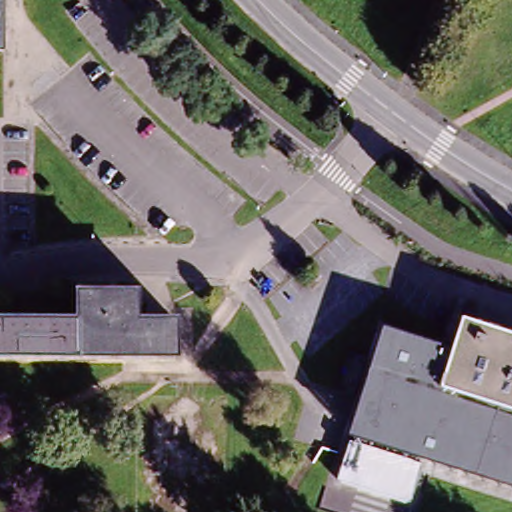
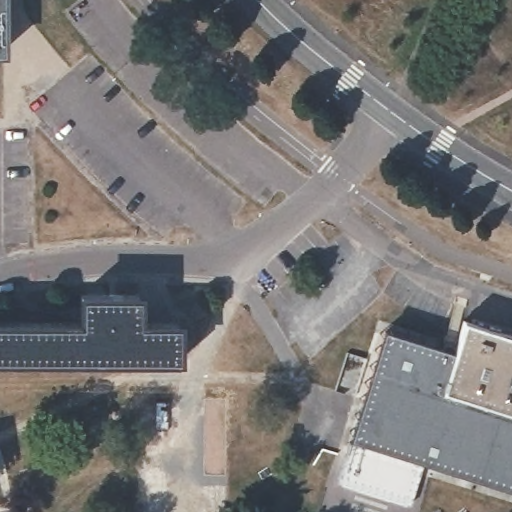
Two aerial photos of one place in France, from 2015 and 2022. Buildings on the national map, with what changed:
unchanged [(77,324),(77,293),(96,294),(134,294),(133,322),(173,323),(174,363),(0,363),(0,322),(77,324)]
unchanged [(437,352),(439,344),(450,347),(447,355),(450,356),(460,325),(512,342),(512,490),(412,456),(353,437),(346,435),(380,333),(437,352)]
unchanged [(343,441),(350,443),(353,437),(412,456),(409,463),(417,465),(403,507),(332,483),(330,482),(331,478),(343,441)]

